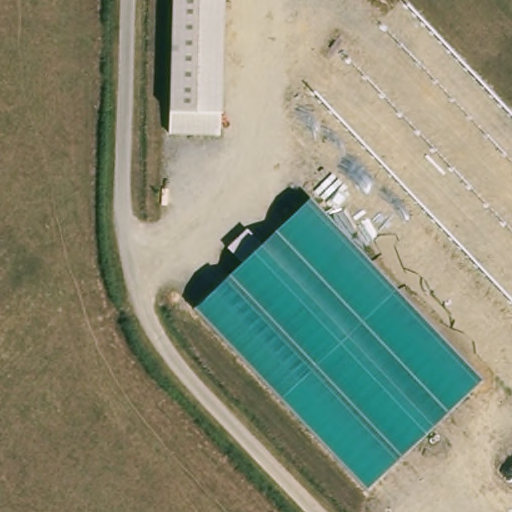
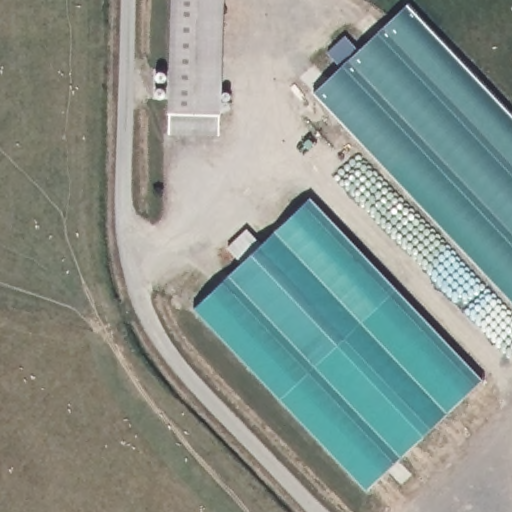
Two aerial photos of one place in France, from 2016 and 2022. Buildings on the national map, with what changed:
unchanged [(224,0),(221,114),(221,136),(169,134),(168,110),(171,0),(224,0)]
new [(341,66),(327,53),(346,37),(357,49),(407,4),(512,115),(512,301),(315,93),(341,66)]
unchanged [(311,197),(482,380),(366,488),(194,309),(311,197)]

